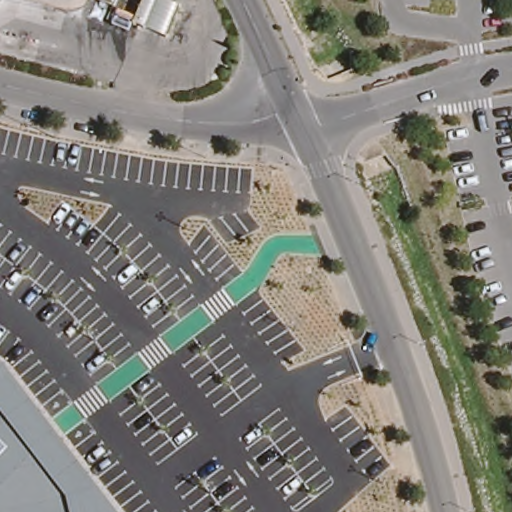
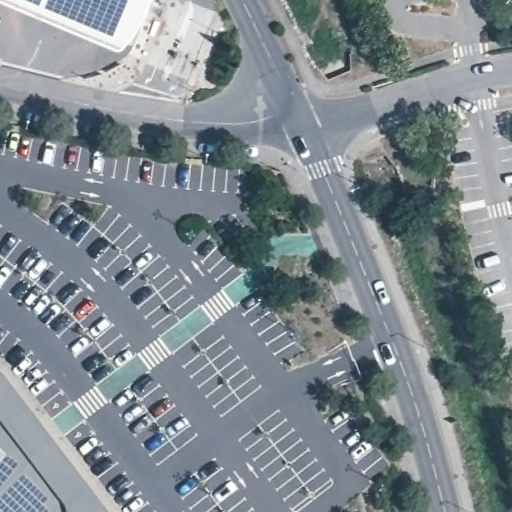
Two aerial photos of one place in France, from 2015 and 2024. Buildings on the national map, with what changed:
new [(151,4),(144,22),(132,40),(120,50),(2,0),(152,0),(151,4)]
unchanged [(112,512),(0,512),(0,368),(6,372),(112,512)]

